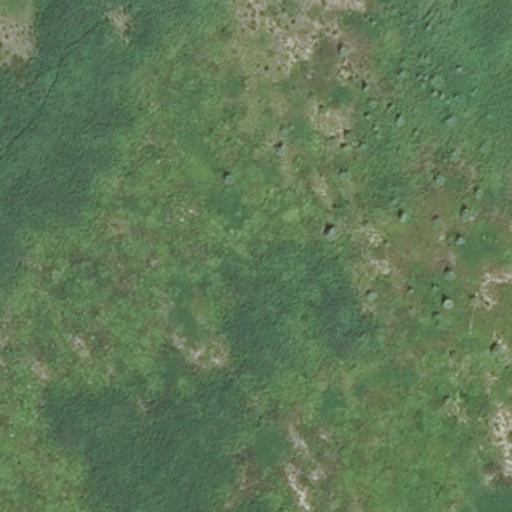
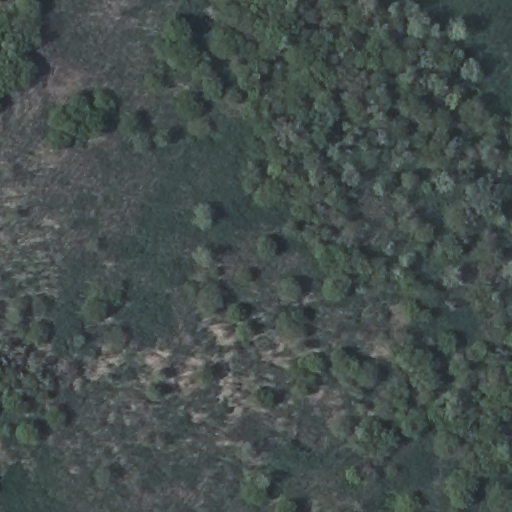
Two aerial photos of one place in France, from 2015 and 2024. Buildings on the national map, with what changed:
[]

